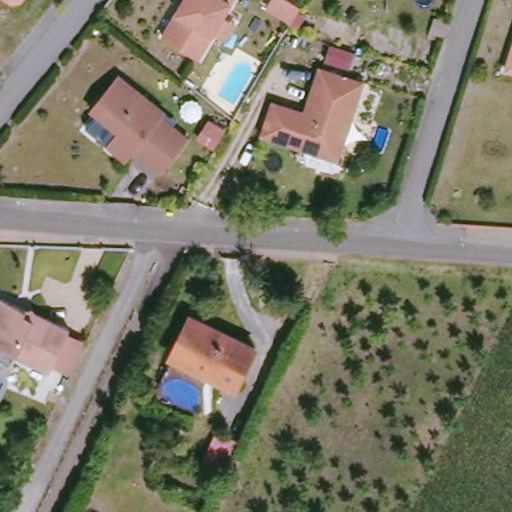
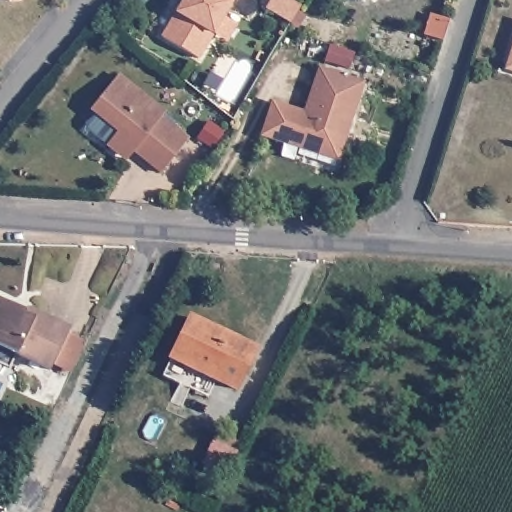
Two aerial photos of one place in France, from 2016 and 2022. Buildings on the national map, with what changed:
unchanged [(12,4),(7,0),(22,0),(20,3),(12,4)]
unchanged [(214,30),(198,56),(163,35),(178,10),(185,14),(192,1),(190,0),(232,0),(222,16),(235,24),(226,39),(214,30)]
unchanged [(287,29),(263,14),(272,0),(273,0),(296,14),(287,29)]
unchanged [(510,67),(512,60),(512,68),(510,67)]
unchanged [(301,154),(262,141),(273,109),(305,120),(320,75),(365,89),(341,159),(338,167),(301,154)]
unchanged [(131,159),(112,144),(117,138),(122,131),(96,109),(123,76),(169,114),(165,120),(176,130),(191,143),(166,173),(150,160),(147,163),(136,154),(131,159)]
unchanged [(16,368),(0,360),(0,306),(5,297),(32,309),(30,313),(42,318),(44,313),(76,327),(57,369),(23,354),(16,368)]
unchanged [(171,357),(190,317),(251,346),(232,384),(171,357)]
unchanged [(211,467),(224,437),(243,444),(230,474),(211,467)]

